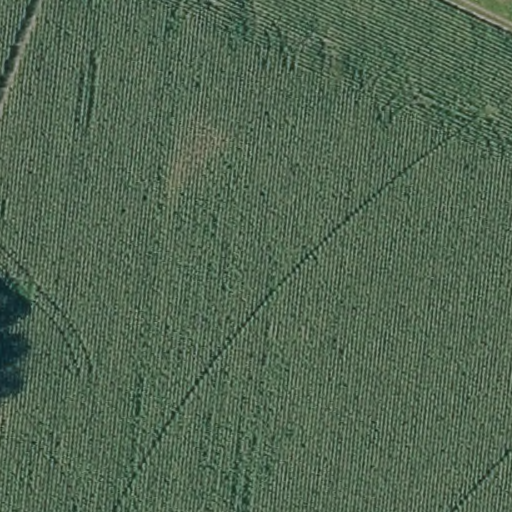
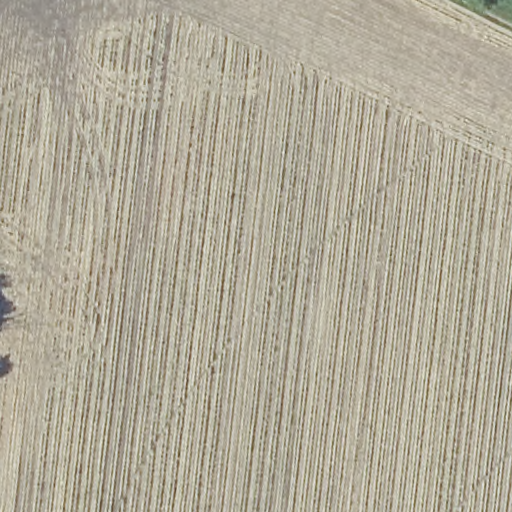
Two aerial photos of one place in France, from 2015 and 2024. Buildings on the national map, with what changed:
[]

